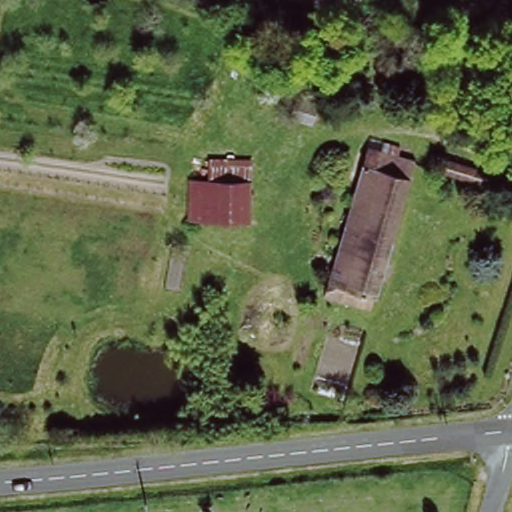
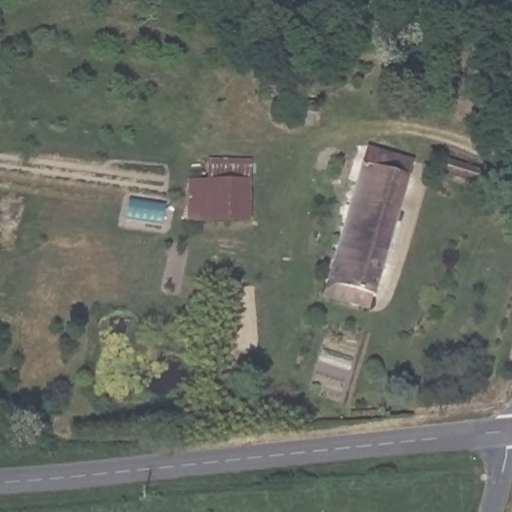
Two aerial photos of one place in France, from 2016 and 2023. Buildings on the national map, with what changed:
unchanged [(319,105),(313,127),(290,119),(296,98),(319,105)]
unchanged [(415,166),(377,303),(370,302),(367,313),(325,303),(330,280),(323,279),(328,262),(335,264),(366,151),(415,166)]
unchanged [(248,160),(250,221),(188,222),(188,183),(212,183),(212,160),(248,160)]
unchanged [(484,173),(481,184),(442,173),(445,160),(484,173)]

